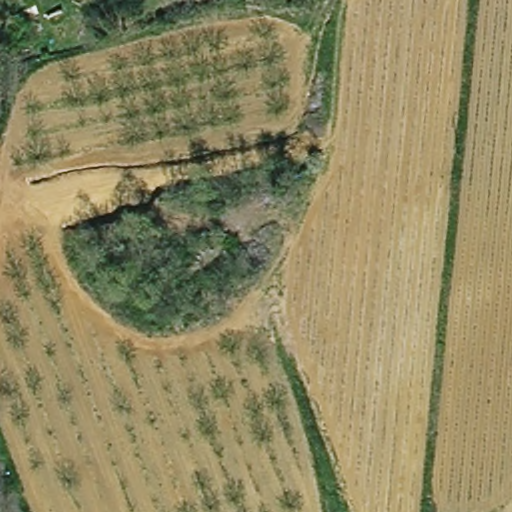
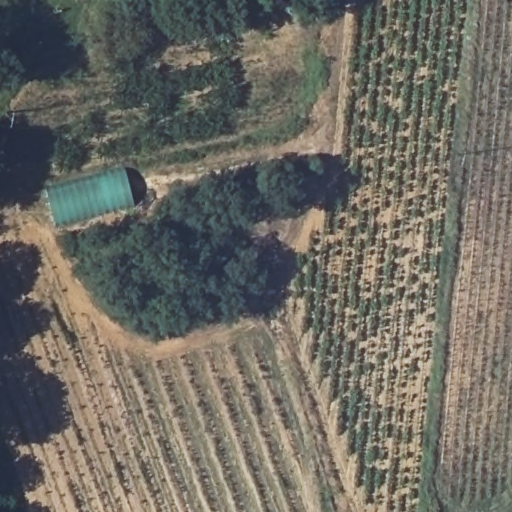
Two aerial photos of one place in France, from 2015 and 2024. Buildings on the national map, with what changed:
new [(125,168),(136,205),(55,225),(45,190),(125,168)]

